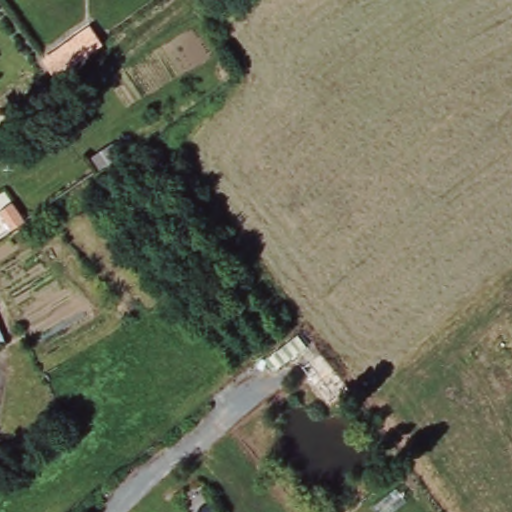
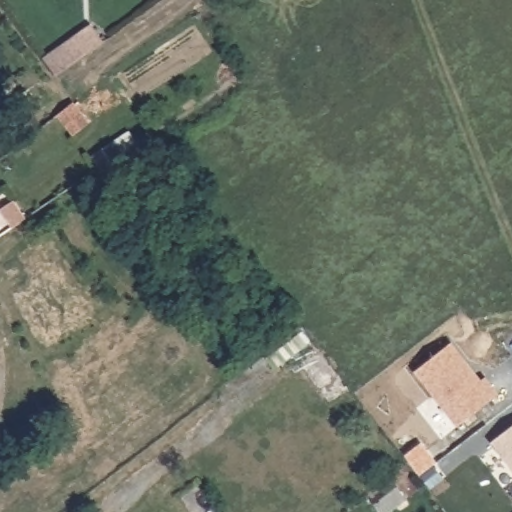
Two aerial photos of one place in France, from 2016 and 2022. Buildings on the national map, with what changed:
unchanged [(46,65),(78,41),(74,36),(90,25),(103,42),(83,57),(55,76),(46,65)]
new [(413,372),(450,343),(480,380),(484,377),(496,393),(455,426),(413,372)]
new [(512,426),(512,470),(490,443),(512,426)]

